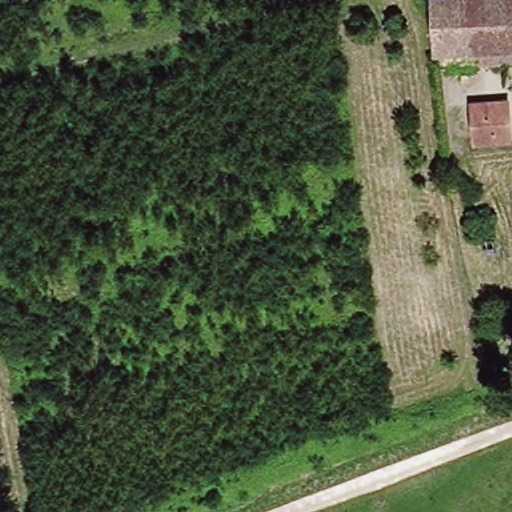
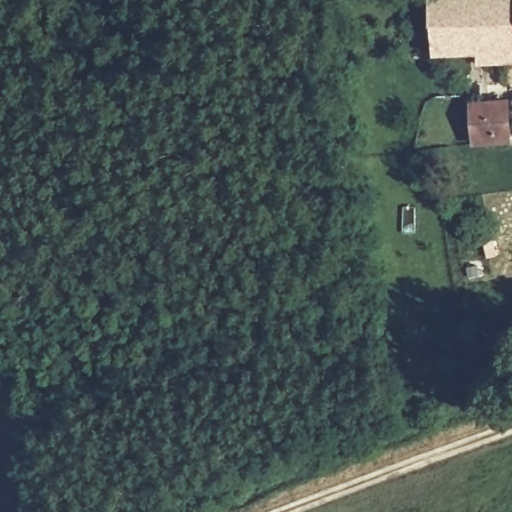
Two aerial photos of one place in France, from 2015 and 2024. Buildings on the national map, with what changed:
unchanged [(479,49),(432,51),(429,0),(476,0),(479,49)]
unchanged [(512,56),(480,57),(479,49),(476,0),(512,0),(512,56)]
unchanged [(478,99),(512,101),(512,140),(493,139),(476,136),(478,99)]

